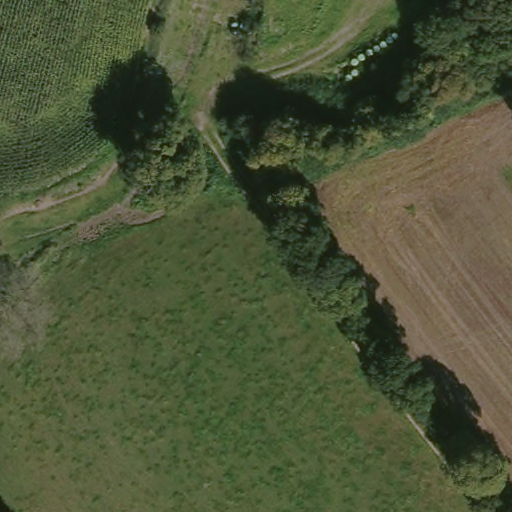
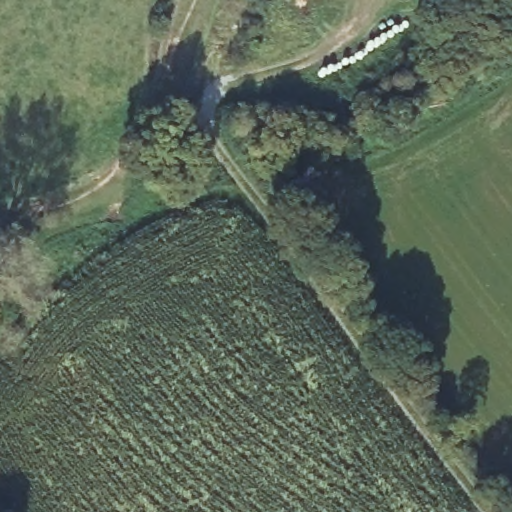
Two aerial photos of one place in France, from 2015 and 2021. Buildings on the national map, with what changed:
[]

